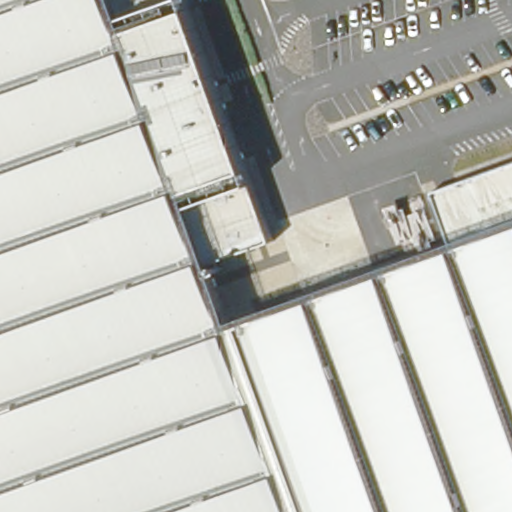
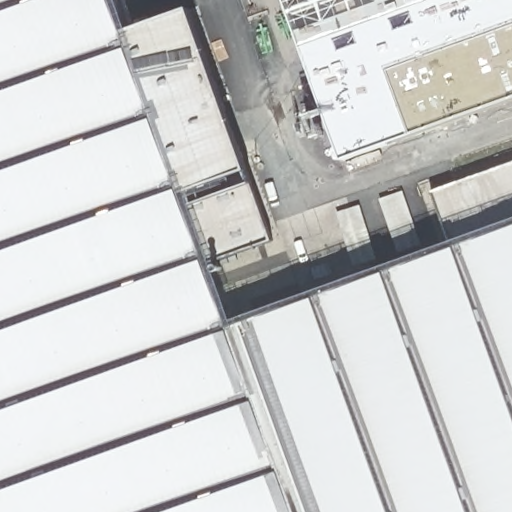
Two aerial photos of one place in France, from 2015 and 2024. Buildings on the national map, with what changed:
unchanged [(244,180),(249,190),(268,239),(210,259),(202,262),(226,327),(241,326),(308,512),(0,512),(0,0),(180,0),(244,180)]
new [(345,160),(286,0),(512,0),(512,100),(345,160)]
unchanged [(308,512),(241,326),(450,242),(436,196),(512,168),(512,512),(308,512)]
new [(336,214),(360,206),(378,258),(354,266),(336,214)]

